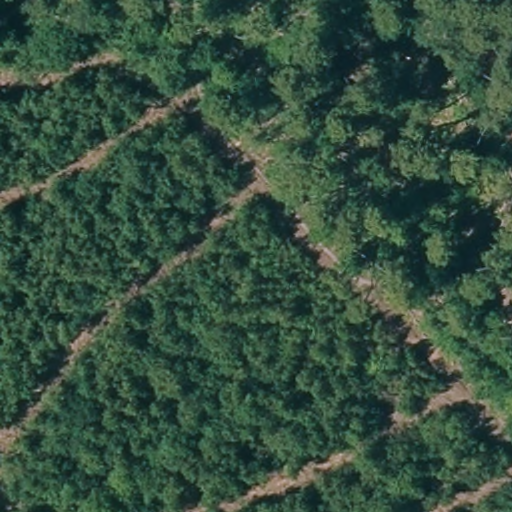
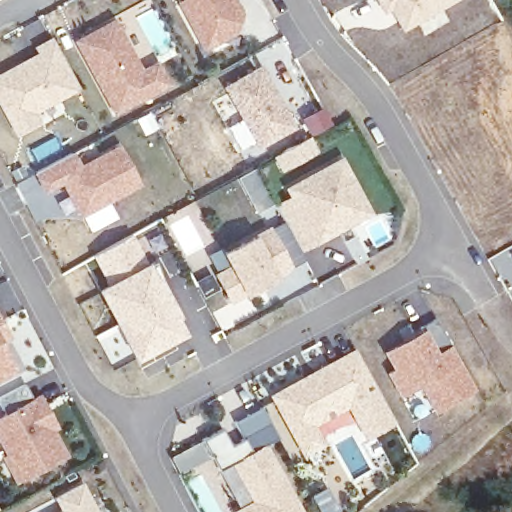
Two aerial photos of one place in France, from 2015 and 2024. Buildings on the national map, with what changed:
new [(179,0),(236,0),(243,14),(235,35),(204,50),(176,2),(179,0)]
new [(389,10),(383,13),(376,0),(456,0),(401,32),(389,10)]
new [(156,59),(170,85),(115,114),(74,39),(115,16),(142,67),(156,59)]
new [(0,73),(35,53),(33,46),(51,36),(80,90),(35,115),(40,123),(15,136),(0,108),(0,73)]
new [(258,150),(223,86),(260,64),(295,126),(258,150)]
new [(140,186),(79,219),(61,186),(42,196),(32,174),(74,151),(81,163),(119,143),(140,186)]
new [(274,204),(286,196),(283,188),(342,158),(372,214),(301,251),(274,204)]
new [(219,287),(204,297),(195,280),(210,273),(211,276),(214,274),(216,270),(209,255),(220,248),(221,255),(255,235),(270,226),(291,269),(278,277),(243,296),(231,304),(219,287)]
new [(134,233),(146,254),(144,256),(145,260),(105,283),(90,257),(134,233)]
new [(95,290),(105,283),(145,260),(171,301),(185,331),(134,362),(131,356),(114,367),(95,336),(113,324),(95,290)]
new [(0,341),(17,372),(0,380),(0,315),(12,340),(0,341)]
new [(434,413),(420,386),(398,399),(385,374),(390,369),(382,351),(424,328),(426,325),(437,319),(475,389),(434,413)]
new [(353,349),(391,419),(378,427),(372,420),(361,427),(346,400),(308,421),(318,441),(301,450),(274,394),(353,349)]
new [(5,456),(0,446),(0,415),(2,414),(0,407),(0,396),(25,383),(32,398),(39,392),(58,428),(54,430),(67,456),(13,483),(1,457),(5,456)]
new [(230,511),(250,501),(230,462),(220,468),(205,439),(222,430),(230,444),(244,437),(235,421),(261,407),(277,438),(266,443),(302,512),(231,512),(230,511)]
new [(59,510),(54,496),(82,481),(100,512),(55,512),(59,510)]

